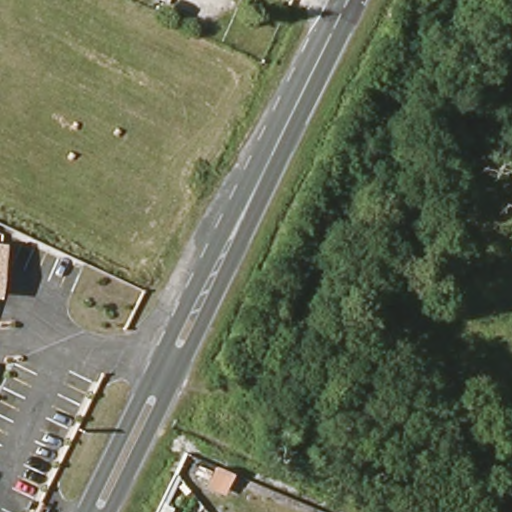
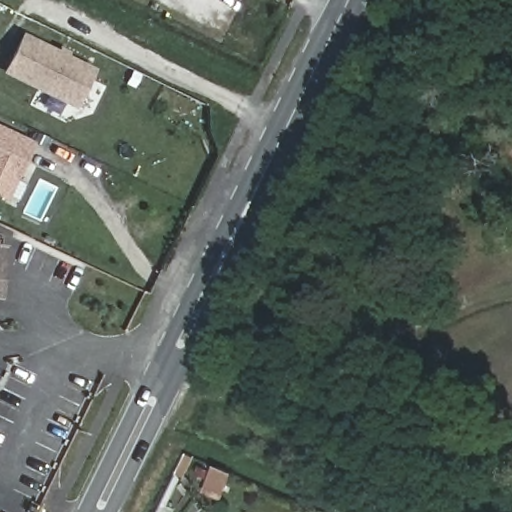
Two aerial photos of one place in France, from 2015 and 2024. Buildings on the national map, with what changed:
new [(4,72),(23,31),(96,67),(76,108),(4,72)]
new [(0,197),(0,124),(35,141),(8,201),(0,197)]
unchanged [(0,246),(3,246),(0,272),(0,246)]
unchanged [(224,492),(210,486),(218,467),(232,473),(224,492)]

